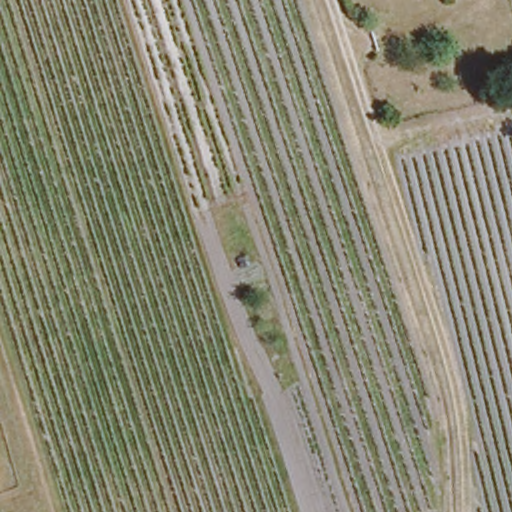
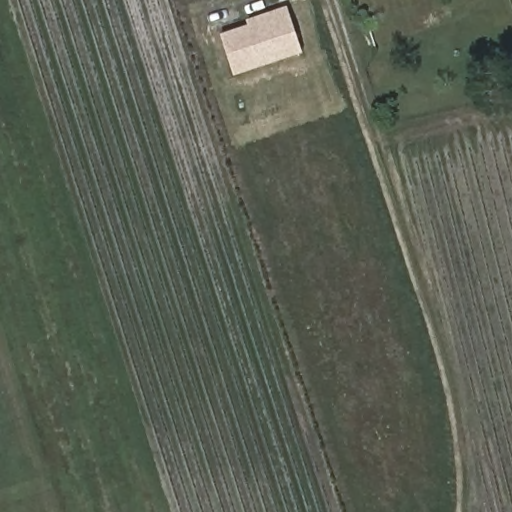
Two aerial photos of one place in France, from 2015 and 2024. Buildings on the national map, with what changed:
new [(270,17),(268,12),(285,6),(300,50),(232,72),(219,35),(270,17)]
new [(245,20),(268,12),(270,17),(247,25),(245,20)]

